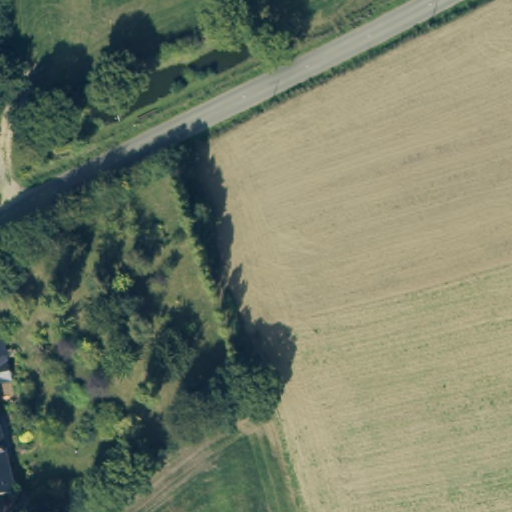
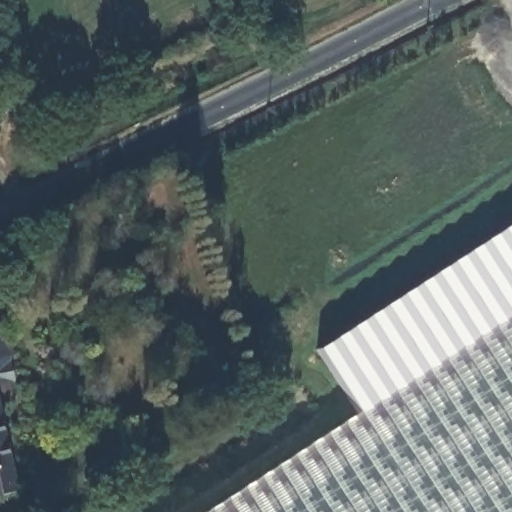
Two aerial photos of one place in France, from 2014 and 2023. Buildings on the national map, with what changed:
new [(356,413),(316,350),(512,223),(512,512),(203,512),(356,413)]
unchanged [(0,383),(0,332),(8,360),(13,380),(0,383)]
unchanged [(4,438),(16,490),(0,495),(0,423),(4,438)]

